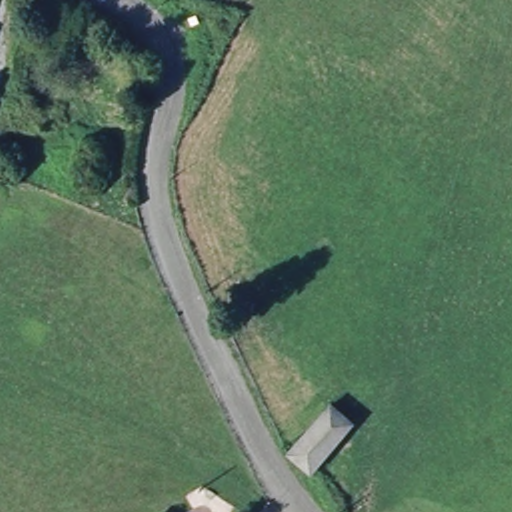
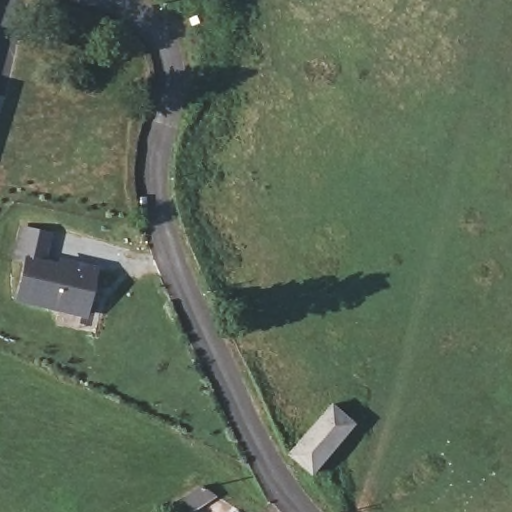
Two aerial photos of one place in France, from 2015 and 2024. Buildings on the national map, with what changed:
new [(13,302),(23,263),(11,260),(19,225),(52,233),(48,257),(97,267),(85,318),(13,302)]
unchanged [(355,426),(310,474),(290,453),(293,450),(334,406),(355,426)]

